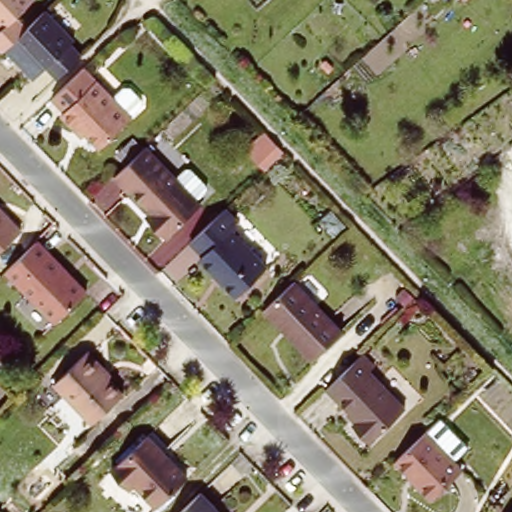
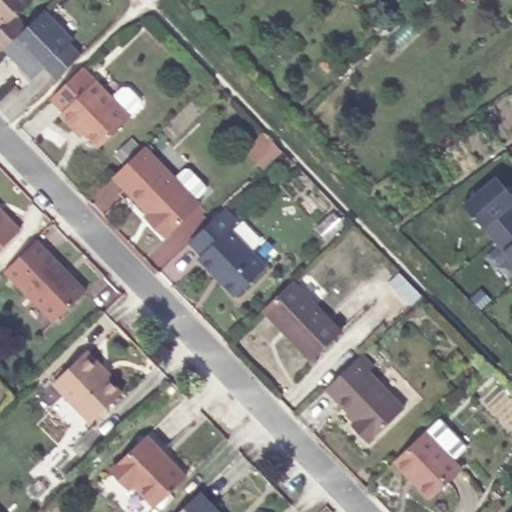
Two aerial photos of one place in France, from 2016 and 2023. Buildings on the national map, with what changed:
unchanged [(15,12),(28,25),(17,36),(7,45),(4,48),(0,44),(0,28),(4,24),(0,20),(0,0),(28,0),(15,12)]
unchanged [(46,61),(42,65),(34,74),(7,45),(17,36),(28,25),(47,8),(74,36),(70,40),(81,51),(59,74),(46,61)]
unchanged [(75,126),(60,111),(64,107),(52,95),(82,65),(112,96),(126,85),(140,99),(137,107),(100,145),(85,130),(81,134),(75,126)]
unchanged [(262,169),(249,155),(242,148),(263,128),(270,135),(283,149),(262,169)]
unchanged [(155,207),(119,170),(149,140),(179,170),(189,161),(195,162),(207,175),(207,183),(200,191),(205,196),(172,230),(157,214),(152,210),(155,207)]
new [(512,195),(512,206),(510,207),(512,209),(512,226),(495,241),(464,205),(497,176),(512,195)]
unchanged [(0,252),(0,204),(4,207),(24,228),(0,252)]
unchanged [(201,262),(205,259),(190,245),(224,212),(235,224),(229,230),(265,268),(235,298),(220,282),(213,275),(201,262)]
new [(512,260),(495,241),(512,226),(512,260)]
unchanged [(90,285),(59,315),(8,264),(40,234),(90,285)]
unchanged [(293,278),(342,328),(313,357),(286,330),(287,328),(265,305),(293,278)]
unchanged [(106,360),(104,363),(125,387),(95,415),(60,376),(91,345),(106,360)]
unchanged [(367,350),(378,363),(375,368),(407,403),(372,437),(355,420),(360,415),(331,385),(367,350)]
unchanged [(425,427),(461,465),(432,494),(395,456),(425,427)]
unchanged [(185,475),(155,503),(134,480),(127,485),(110,467),(145,433),(185,475)]
unchanged [(228,512),(173,512),(202,485),(228,512)]
unchanged [(512,512),(511,512),(512,511),(512,512)]

